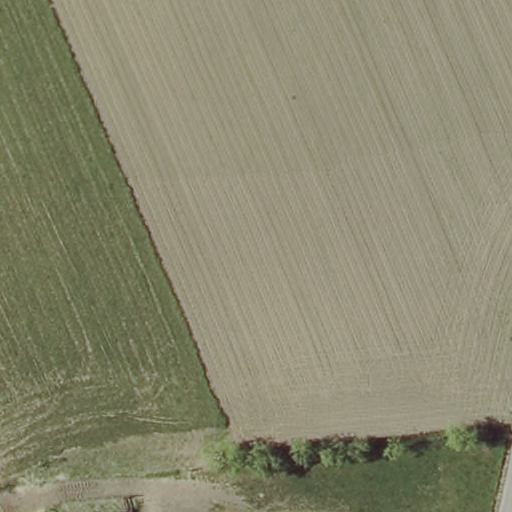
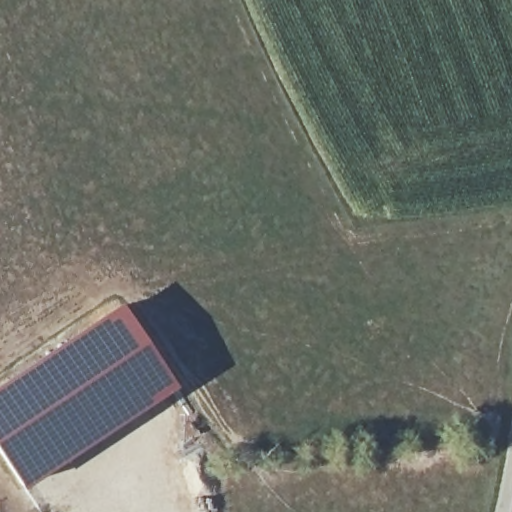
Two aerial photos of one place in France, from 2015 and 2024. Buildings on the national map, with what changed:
new [(116,300),(174,385),(23,486),(0,453),(0,379),(116,300)]

